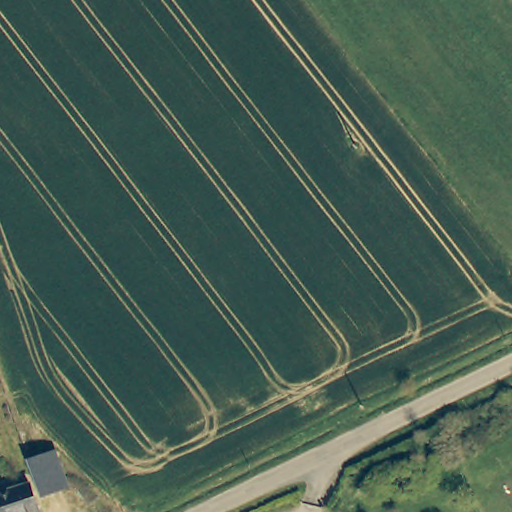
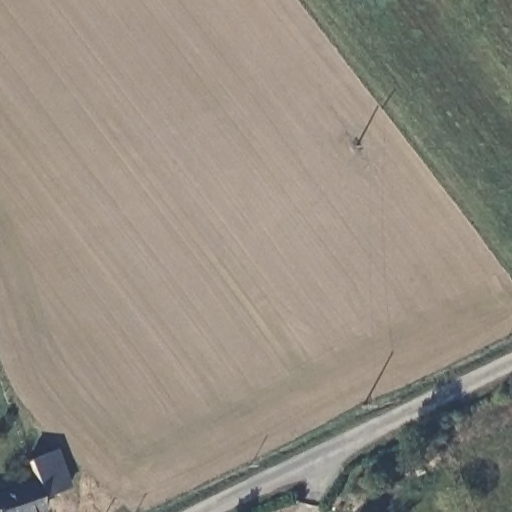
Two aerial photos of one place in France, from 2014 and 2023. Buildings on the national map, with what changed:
unchanged [(54,452),(67,487),(41,497),(28,462),(54,452)]
unchanged [(39,512),(0,512),(0,493),(30,483),(39,512)]

